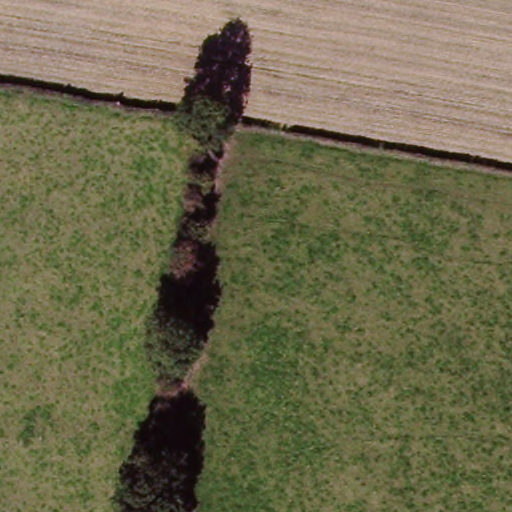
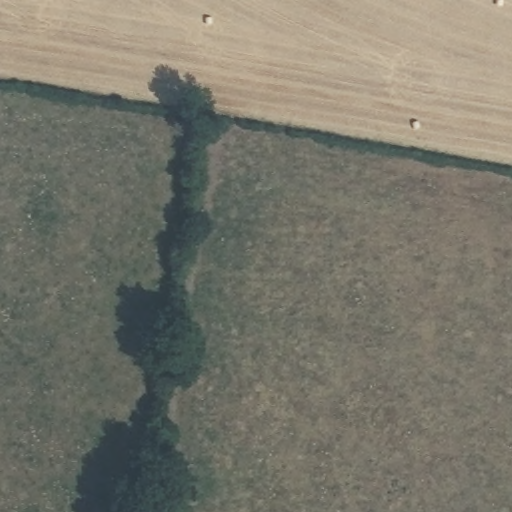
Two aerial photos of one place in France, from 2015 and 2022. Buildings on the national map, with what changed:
[]

